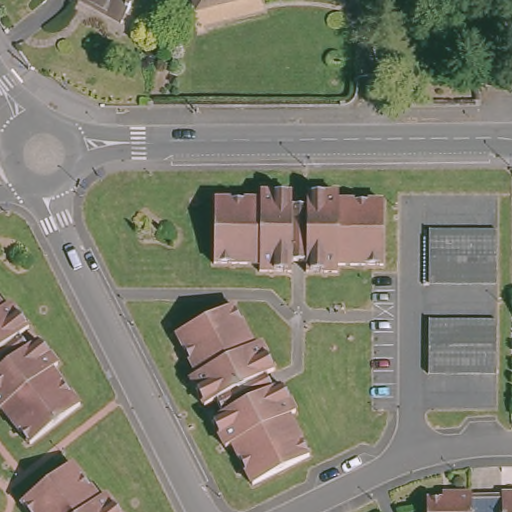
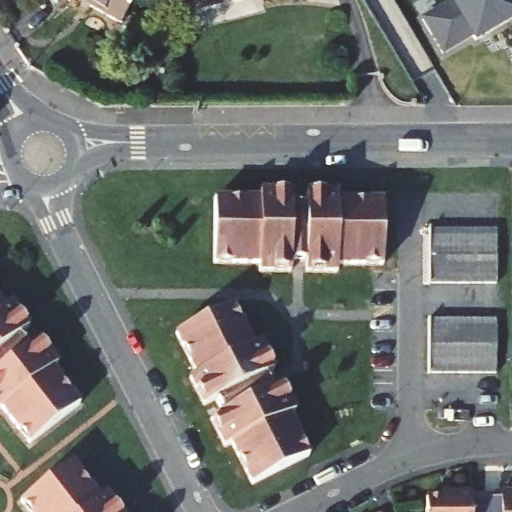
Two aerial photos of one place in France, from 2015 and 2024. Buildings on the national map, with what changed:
unchanged [(77,0),(138,0),(125,25),(77,0)]
unchanged [(196,18),(193,0),(271,0),(196,18)]
new [(450,0),(512,0),(512,19),(475,42),(472,37),(443,55),(422,21),(452,3),(450,0)]
unchanged [(260,211),(260,202),(291,202),(292,220),(307,220),(306,202),(339,202),(339,211),(384,211),(384,226),(399,226),(399,261),(384,261),(384,272),(339,272),(339,281),(307,281),(307,268),(292,268),(292,281),(260,281),(260,272),(215,272),(215,211),(260,211)]
unchanged [(434,236),(499,236),(499,291),(435,292),(434,236)]
unchanged [(5,310),(10,306),(27,331),(17,340),(27,353),(38,344),(57,369),(52,373),(78,409),(28,448),(1,412),(0,412),(0,304),(5,310)]
unchanged [(233,310),(253,350),(261,346),(276,374),(260,382),(267,396),(283,388),(297,416),(290,420),(310,461),(256,489),(236,448),(228,452),(213,424),(225,418),(217,405),(206,411),(191,382),(200,378),(179,338),(233,310)]
unchanged [(430,327),(494,326),(495,382),(430,382),(430,327)]
unchanged [(101,509),(108,503),(116,512),(23,512),(72,473),(101,509)]
unchanged [(500,499),(512,499),(512,512),(485,512),(485,502),(499,501),(500,499)]
unchanged [(452,506),(451,500),(470,500),(470,503),(485,502),(485,512),(425,512),(425,507),(452,506)]

